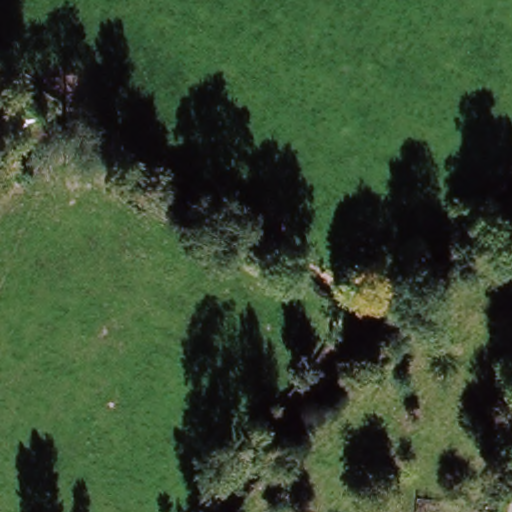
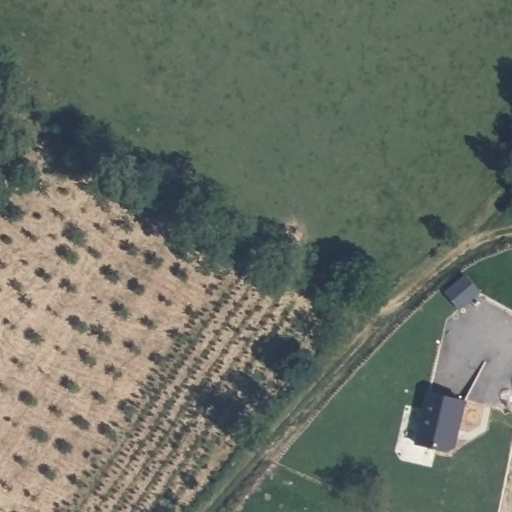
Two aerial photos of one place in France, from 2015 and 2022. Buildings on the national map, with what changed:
new [(427,391),(466,401),(458,447),(448,452),(415,445),(427,391)]

